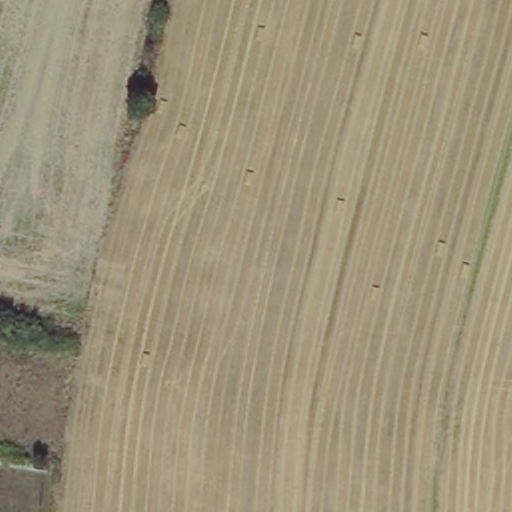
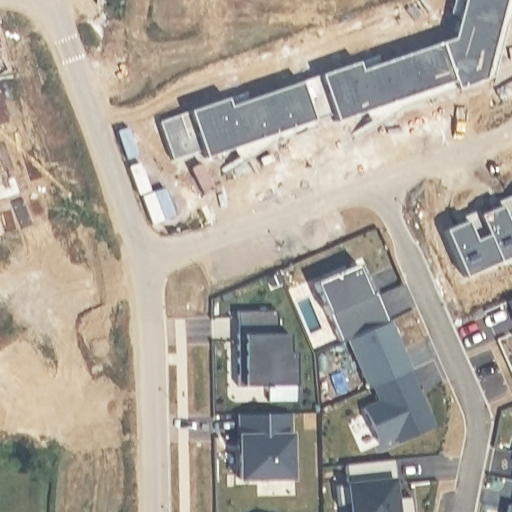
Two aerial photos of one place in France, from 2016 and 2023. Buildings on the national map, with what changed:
new [(247,103),(380,53),(383,63),(453,41),(460,15),(452,13),(455,0),(509,0),(485,82),(457,90),(454,81),(335,119),(333,113),(205,158),(202,149),(172,160),(159,120),(245,91),(247,103)]
new [(8,191),(0,194),(0,167),(8,191)]
new [(461,216),(474,209),(478,216),(496,208),(494,202),(509,195),(512,200),(512,258),(464,279),(444,230),(463,223),(461,216)]
new [(323,287),(365,264),(388,324),(346,343),(323,287)]
new [(274,317),(275,338),(289,337),(289,387),(238,387),(239,320),(274,317)]
new [(434,427),(392,442),(376,448),(358,410),(374,402),(346,343),(388,324),(434,427)]
new [(290,485),(238,485),(237,460),(245,460),(244,440),(237,440),(238,420),(290,418),(290,485)]
new [(395,512),(340,512),(338,477),(342,477),(343,461),(392,459),(395,512)]
new [(508,510),(512,511),(512,512),(508,512),(508,510)]

